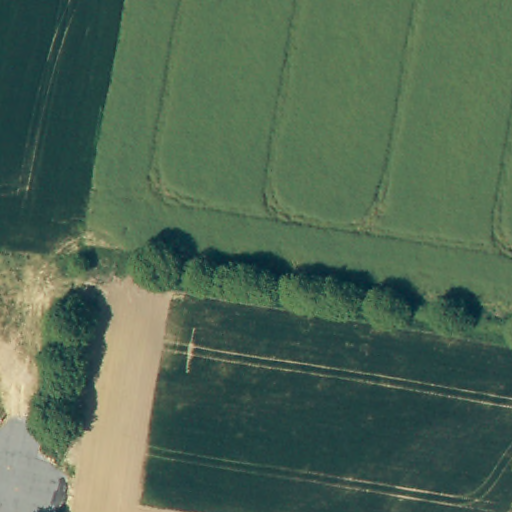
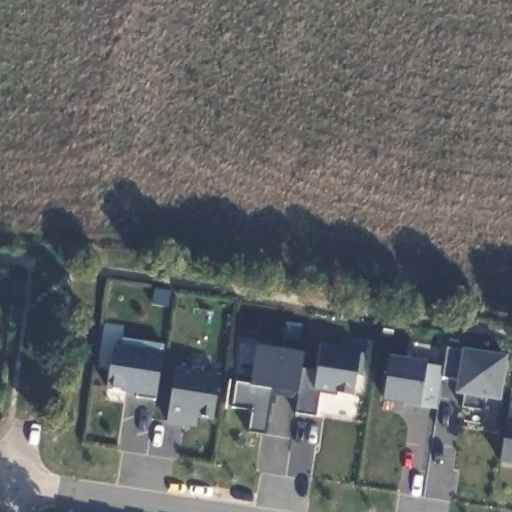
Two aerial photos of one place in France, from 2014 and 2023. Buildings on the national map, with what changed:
new [(107,390),(112,349),(120,350),(121,345),(162,351),(156,397),(107,390)]
new [(296,412),(297,398),(298,393),(303,370),(317,371),(322,345),(341,348),(340,350),(361,353),(365,354),(362,376),(356,375),(352,395),(320,390),(315,415),(296,412)]
new [(237,382),(249,385),(257,346),(306,354),(303,367),(298,393),(297,398),(272,395),(266,435),(248,433),(252,409),(232,406),(237,382)]
new [(445,365),(447,347),(463,350),(507,356),(500,400),(486,398),(484,410),(463,407),(466,396),(455,394),(457,380),(442,377),(437,408),(421,406),(382,401),(387,356),(426,362),(445,365)]
new [(222,375),(215,421),(198,418),(197,427),(165,422),(172,368),(222,375)]
new [(506,418),(512,419),(512,465),(498,463),(506,418)]

